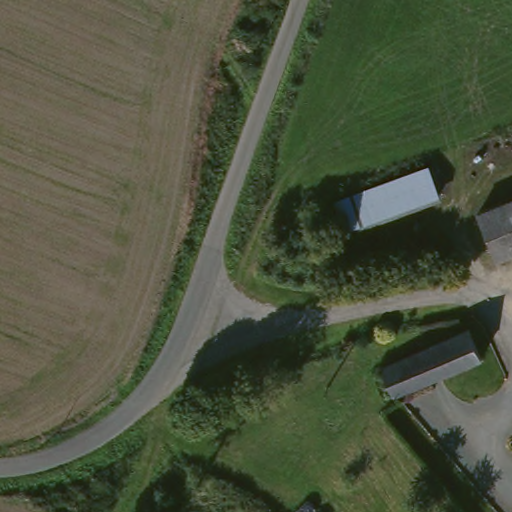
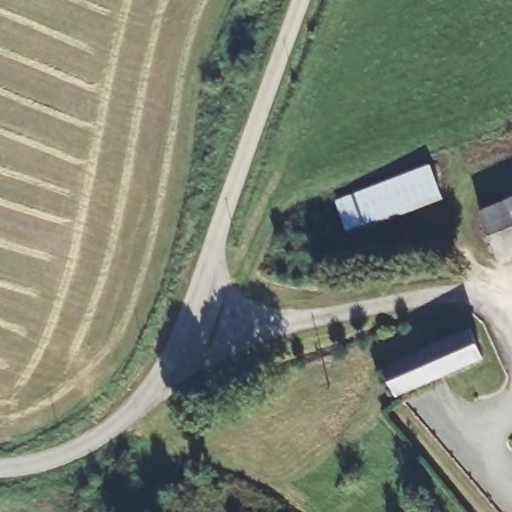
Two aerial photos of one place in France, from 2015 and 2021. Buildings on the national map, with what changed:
unchanged [(440,191),(347,229),(336,204),(431,167),(440,191)]
unchanged [(512,200),(512,253),(500,258),(480,212),(512,200)]
unchanged [(452,392),(443,373),(392,394),(380,370),(463,330),(476,357),(486,377),(452,392)]

